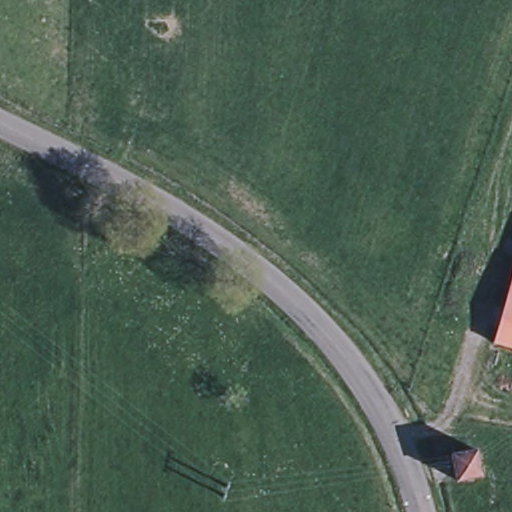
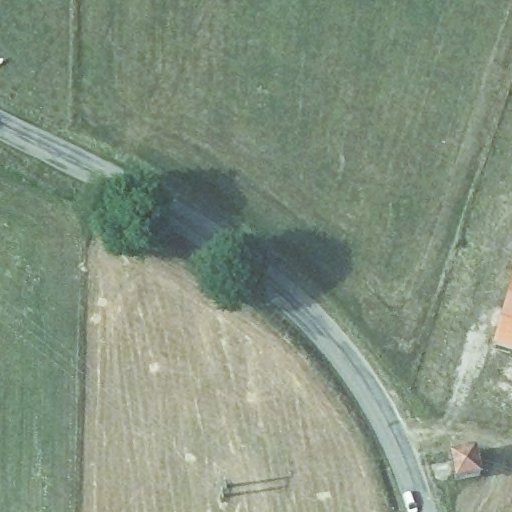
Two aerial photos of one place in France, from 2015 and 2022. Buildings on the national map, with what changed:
unchanged [(493,348),(512,268),(512,353),(493,348)]

